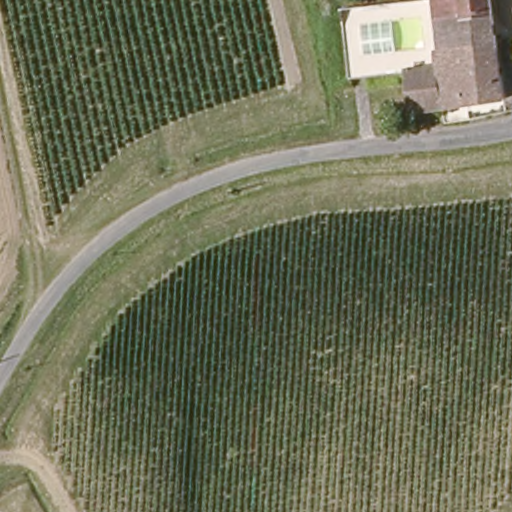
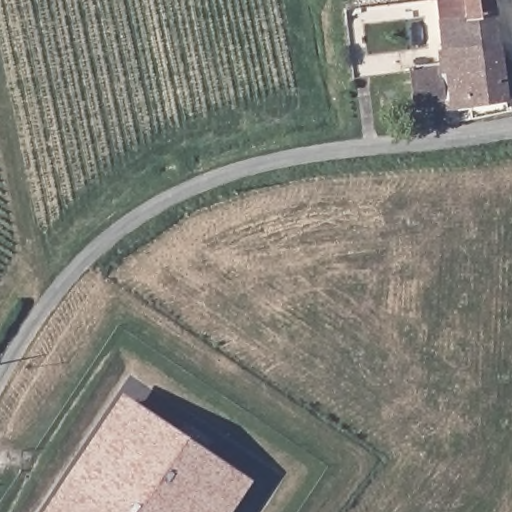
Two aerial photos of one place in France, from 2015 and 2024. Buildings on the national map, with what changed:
unchanged [(435,8),(434,0),(497,0),(501,60),(436,62),(435,8)]
unchanged [(506,116),(415,121),(408,79),(437,76),(436,62),(501,60),(506,116)]
new [(131,400),(240,474),(215,512),(58,512),(131,400)]

